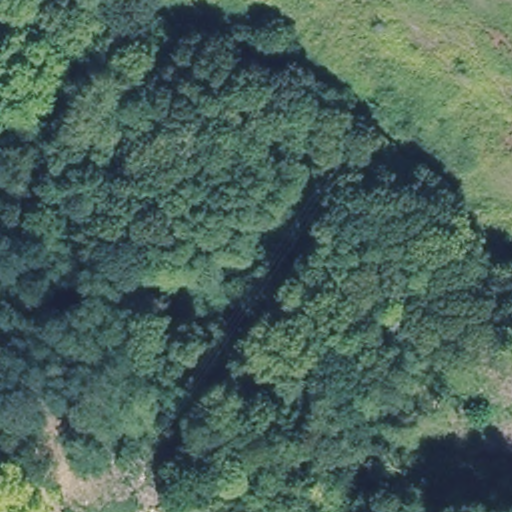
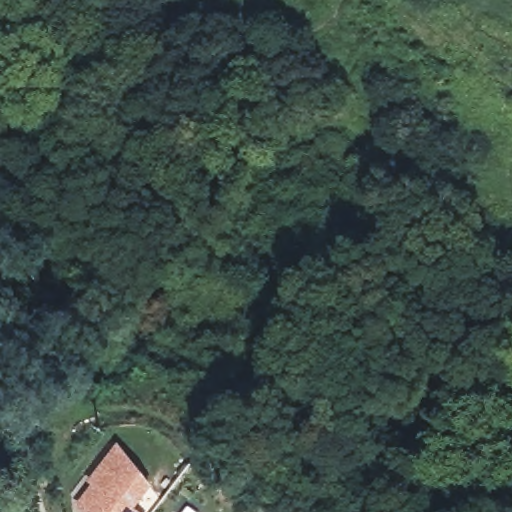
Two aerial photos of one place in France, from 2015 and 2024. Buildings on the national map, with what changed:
new [(151,488),(135,510),(138,512),(85,512),(75,505),(91,484),(87,481),(116,444),(151,488)]

